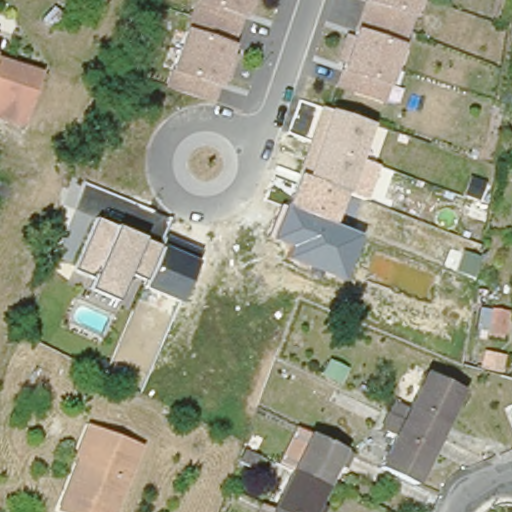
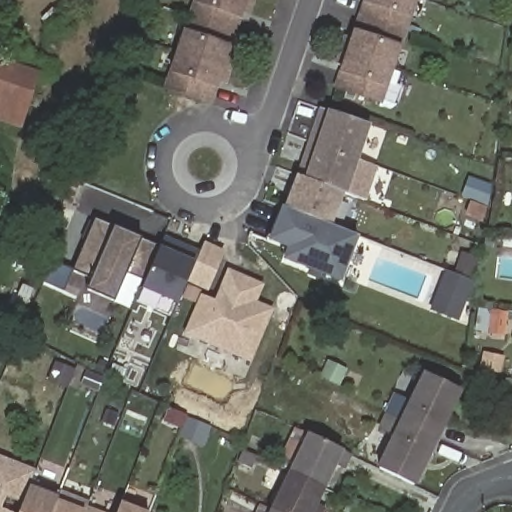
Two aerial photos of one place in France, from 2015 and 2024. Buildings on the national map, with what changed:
unchanged [(251,15),(243,13),(232,51),(239,54),(229,85),(221,84),(214,105),(164,86),(197,0),(256,0),(251,15)]
unchanged [(333,88),(363,0),(422,0),(384,103),(333,88)]
unchanged [(0,35),(0,32),(1,32),(0,35)]
unchanged [(55,76),(37,130),(0,117),(0,60),(55,76)]
unchanged [(323,110),(374,124),(348,193),(346,192),(299,179),(323,110)]
unchanged [(299,179),(346,192),(332,225),(359,234),(342,282),(283,261),(289,246),(273,241),(299,179)]
unchanged [(147,283),(125,273),(117,302),(87,291),(92,277),(75,270),(97,221),(162,248),(147,283)]
unchanged [(166,236),(201,249),(197,261),(178,305),(144,291),(147,283),(162,248),(166,236)]
new [(209,291),(188,282),(197,261),(201,249),(204,241),(226,251),(209,291)]
new [(185,334),(202,294),(217,301),(229,268),(265,283),(257,300),(276,308),(252,363),(185,334)]
new [(448,274),(472,284),(464,305),(457,324),(432,314),(440,295),(448,274)]
unchanged [(505,334),(492,333),(492,327),(482,325),(483,310),(493,311),(507,313),(505,334)]
unchanged [(402,411),(411,415),(427,380),(464,397),(442,443),(397,423),(402,411)]
unchanged [(512,415),(510,409),(512,409),(512,415)]
unchanged [(442,443),(421,490),(384,473),(398,442),(391,437),(397,423),(442,443)]
demolished [(91,432),(134,448),(111,512),(60,512),(56,510),(76,458),(81,460),(91,432)]
unchanged [(353,456),(346,471),(337,466),(326,489),(291,472),(308,435),(353,456)]
new [(19,512),(0,512),(0,456),(35,469),(30,484),(19,512)]
unchanged [(314,512),(277,512),(272,509),(291,472),(326,489),(314,512)]
new [(60,496),(53,512),(19,512),(30,484),(60,496)]
unchanged [(240,494),(234,504),(224,499),(230,489),(240,494)]
new [(87,508),(86,512),(53,512),(60,496),(87,508)]
new [(147,512),(118,512),(122,502),(147,512)]
new [(98,512),(86,512),(87,508),(98,512)]
unchanged [(271,512),(272,509),(277,512),(271,512)]

